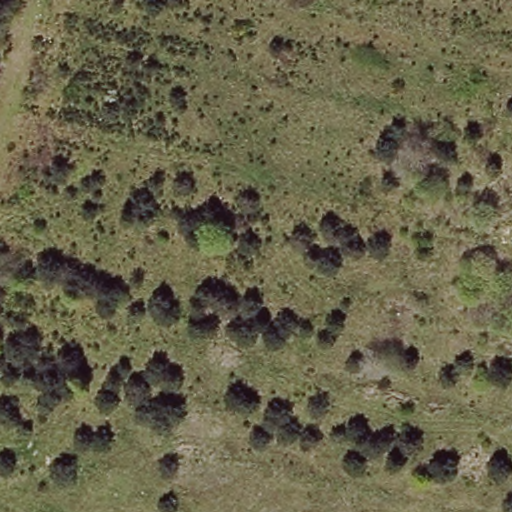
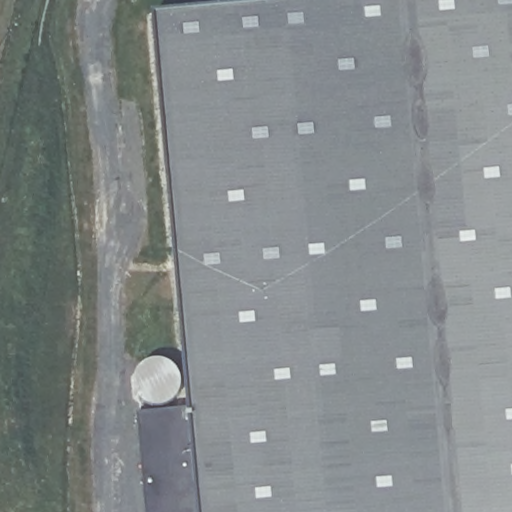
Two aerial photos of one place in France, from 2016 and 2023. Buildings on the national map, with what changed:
new [(512,0),(512,512),(140,512),(131,420),(180,415),(145,25),(416,0),(512,0)]

